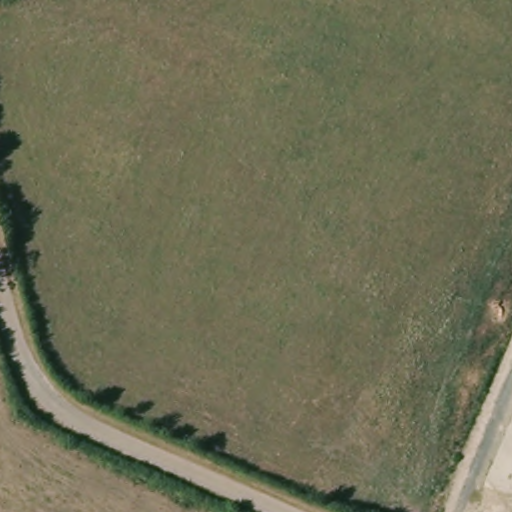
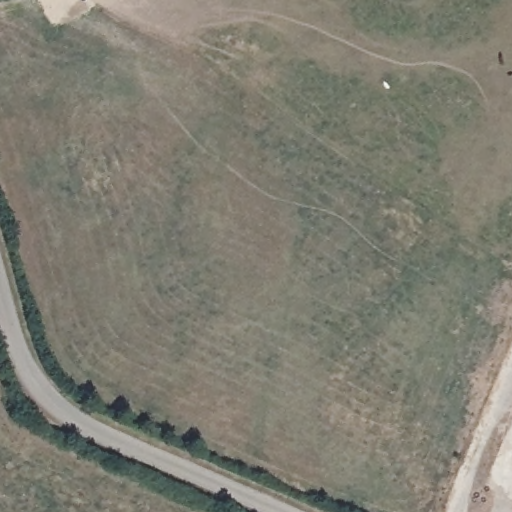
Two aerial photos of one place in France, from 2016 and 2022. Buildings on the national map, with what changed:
[]

